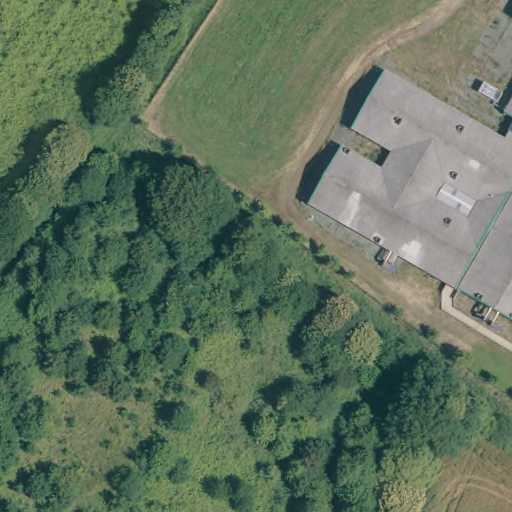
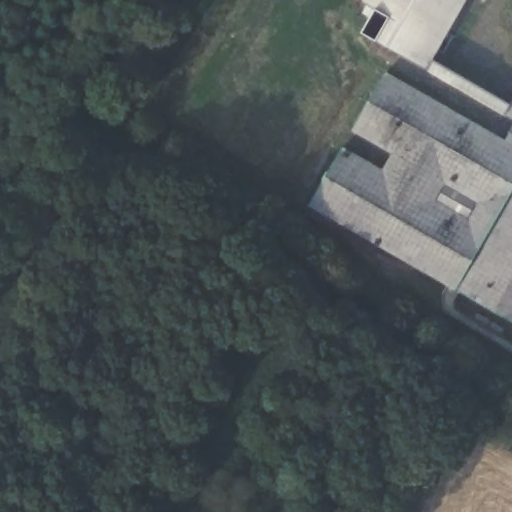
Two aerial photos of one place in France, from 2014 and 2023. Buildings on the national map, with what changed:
new [(362,32),(375,10),(362,1),(363,0),(469,0),(428,73),(362,32)]
unchanged [(315,207),(347,150),(386,172),(397,152),(359,130),(391,74),(508,141),(511,135),(512,135),(512,321),(315,207)]
unchanged [(508,115),(512,107),(512,117),(508,115)]

